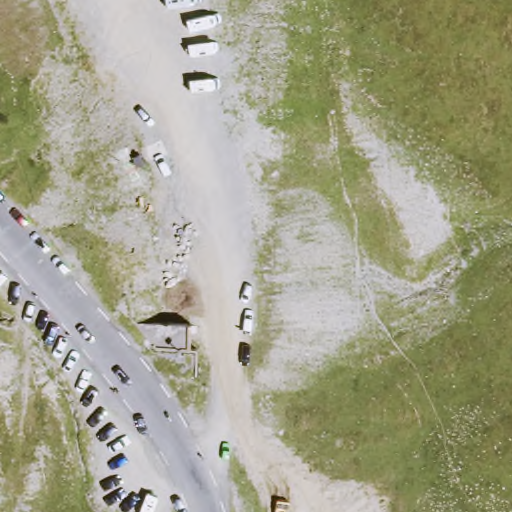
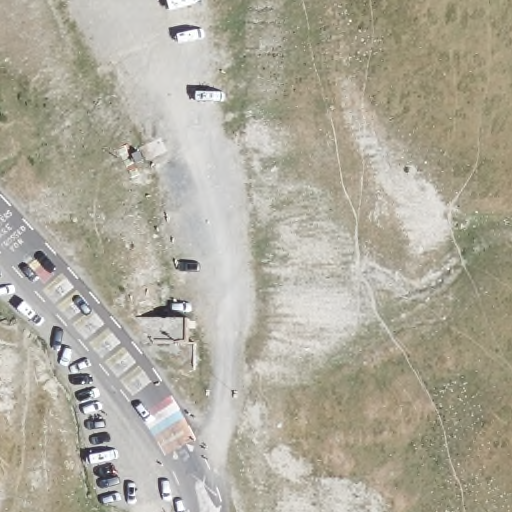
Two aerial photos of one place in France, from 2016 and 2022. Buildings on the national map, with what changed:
unchanged [(198,341),(198,369),(165,368),(140,322),(189,320),(189,341),(198,341)]

